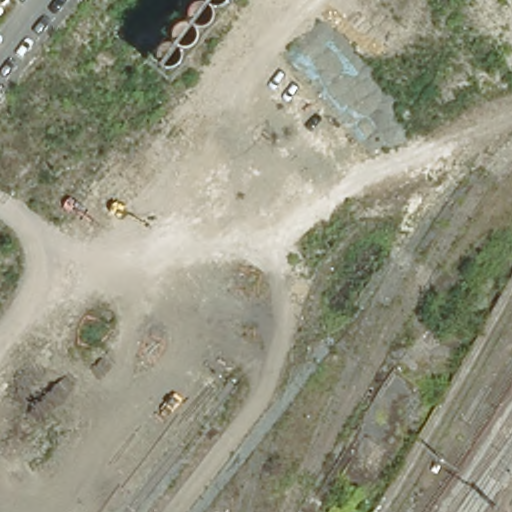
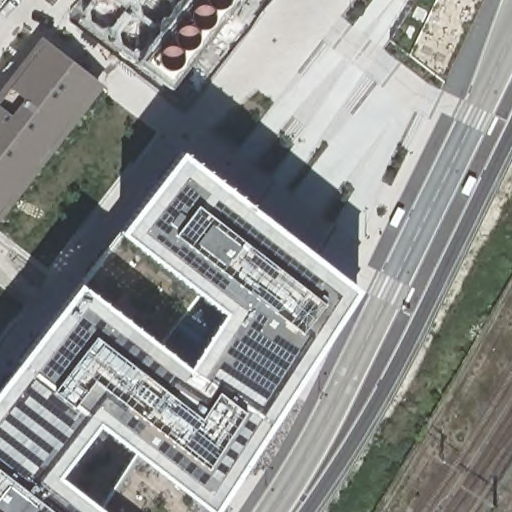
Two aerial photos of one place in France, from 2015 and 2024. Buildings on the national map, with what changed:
new [(0,92),(40,40),(100,87),(0,216),(0,92)]
new [(194,368),(231,312),(128,234),(187,154),(356,290),(215,512),(0,512),(0,396),(85,285),(194,368)]

